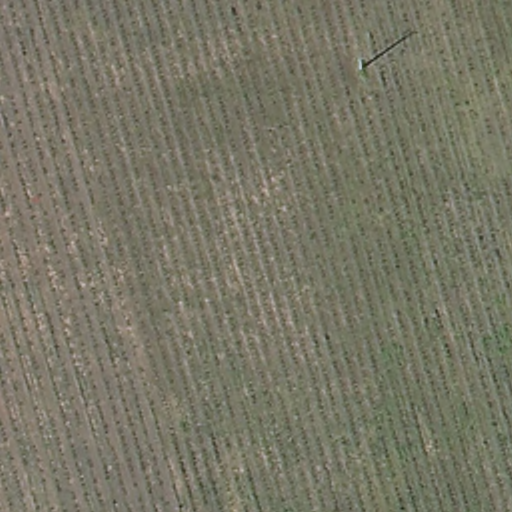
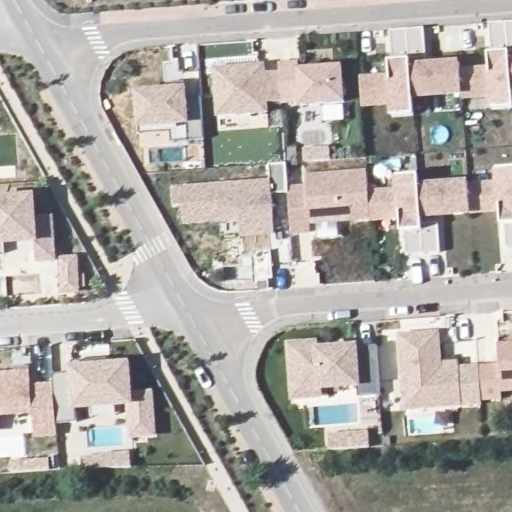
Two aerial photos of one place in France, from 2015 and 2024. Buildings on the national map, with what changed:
new [(491,33),(509,31),(512,31),(512,61),(510,61),(512,68),(512,75),(512,108),(494,109),(492,94),(464,97),(462,73),(494,70),(491,33)]
new [(391,40),(409,39),(425,38),(427,68),(411,69),(412,76),(414,104),(415,115),(394,118),(393,103),(364,104),(362,81),(394,79),(391,40)]
new [(300,64),(300,71),(343,69),(345,104),(302,107),(302,103),(283,104),(283,103),(281,73),(280,65),(300,64)]
new [(265,66),(266,74),(281,73),(283,103),(268,104),(268,114),(219,118),(216,70),(265,66)]
new [(462,73),(464,97),(464,100),(414,104),(412,76),(462,73)]
new [(140,129),(138,94),(169,92),(168,85),(186,84),(187,91),(187,101),(203,100),(206,143),(172,145),(172,136),(141,139),(140,129)]
new [(243,240),(242,234),(242,224),(224,226),(186,229),(184,210),(176,210),(174,190),(272,184),(271,167),(288,165),(290,192),(290,198),(266,199),(268,223),(269,239),(243,240)]
new [(507,249),(504,211),(472,214),(470,189),(499,188),(497,173),(512,171),(512,249),(507,249)]
new [(308,190),(307,180),(369,175),(370,197),(372,219),(311,223),(312,233),(293,234),(292,227),(290,198),(290,192),(308,190)]
new [(441,254),(425,255),(407,257),(404,218),(372,219),(370,197),(399,194),(398,180),(419,178),(420,189),(422,218),(422,225),(439,224),(441,254)]
new [(470,185),(470,189),(472,214),(422,218),(420,189),(470,185)]
new [(36,212),(54,215),(57,257),(77,255),(80,293),(60,294),(57,262),(36,264),(32,244),(0,245),(0,196),(35,194),(36,212)]
new [(405,399),(400,337),(440,334),(442,364),(460,363),(460,370),(480,369),(483,403),(483,407),(445,409),(406,413),(405,399)]
new [(320,346),(320,353),(379,349),(382,399),(360,401),(359,387),(323,390),(324,399),(295,400),(291,348),(320,346)]
new [(499,348),(512,347),(512,393),(504,394),(504,401),(483,403),(480,369),(501,368),(499,348)]
new [(73,369),(72,363),(106,360),(107,368),(128,366),(130,397),(151,396),(154,436),(133,438),(130,404),(77,409),(78,424),(56,426),(54,386),(53,376),(73,374),(73,369)]
new [(15,369),(29,367),(30,373),(31,388),(54,386),(56,426),(57,436),(35,438),(35,434),(0,436),(0,375),(15,374),(15,369)]
new [(116,406),(117,417),(92,419),(91,408),(116,406)]
new [(352,437),(370,435),(370,450),(354,451),(330,453),(329,438),(352,436),(352,437)]
new [(82,459),(104,458),(104,469),(82,471),(82,459)]

